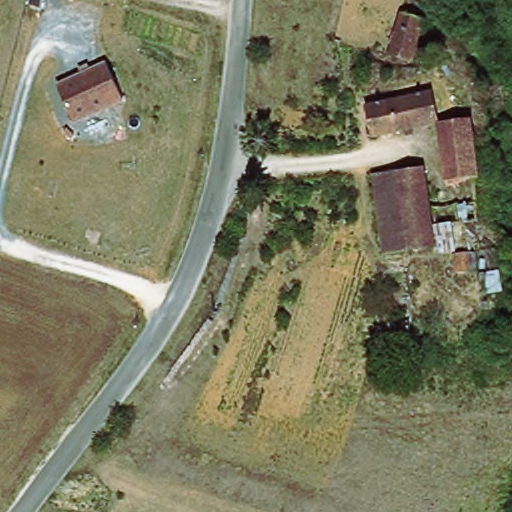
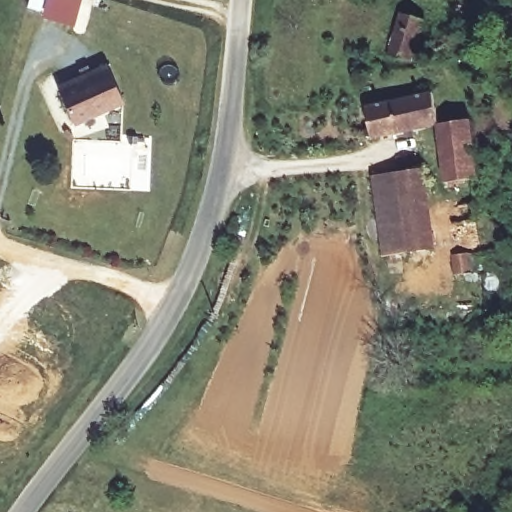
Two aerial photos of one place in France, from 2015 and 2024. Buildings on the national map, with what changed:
new [(41,16),(44,3),(36,0),(82,0),(75,25),(41,16)]
unchanged [(427,23),(413,66),(389,59),(403,15),(427,23)]
unchanged [(124,102),(74,125),(56,84),(107,61),(124,102)]
unchanged [(429,123),(367,136),(360,107),(423,93),(429,123)]
unchanged [(450,194),(434,121),(469,114),(485,188),(450,194)]
unchanged [(473,251),(475,277),(456,278),(453,253),(433,257),(432,248),(384,254),(374,176),(429,169),(433,208),(435,225),(452,222),(454,238),(483,235),(480,249),(473,251)]

